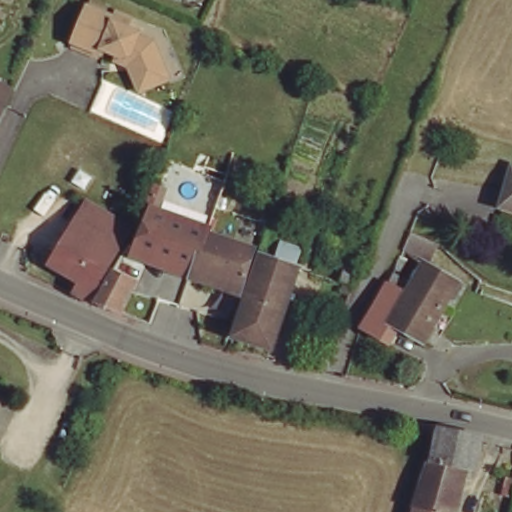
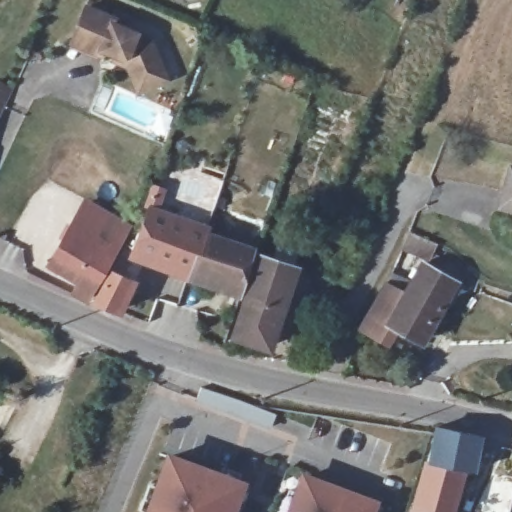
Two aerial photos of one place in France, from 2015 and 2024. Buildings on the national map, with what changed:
unchanged [(99,48),(97,52),(69,42),(82,6),(110,17),(112,12),(126,17),(122,27),(112,53),(99,48)]
unchanged [(136,90),(121,55),(119,56),(112,53),(122,27),(134,32),(133,35),(148,41),(160,67),(165,78),(136,90)]
unchanged [(11,87),(0,116),(0,81),(11,87)]
unchanged [(512,188),(512,214),(505,212),(512,188)]
unchanged [(145,205),(198,226),(198,232),(200,232),(247,251),(232,287),(186,268),(128,245),(145,205)]
unchanged [(75,290),(81,278),(52,265),(74,222),(79,224),(88,207),(128,227),(117,244),(90,297),(75,290)]
unchanged [(226,335),(259,256),(289,268),(258,347),(226,335)]
unchanged [(101,302),(120,265),(140,276),(123,309),(101,302)]
unchanged [(388,312),(408,282),(453,310),(431,343),(405,328),(395,343),(376,332),(377,323),(385,310),(388,312)]
new [(196,401),(202,386),(276,413),(270,428),(196,401)]
unchanged [(430,460),(438,427),(482,438),(476,472),(464,468),(430,460)]
new [(230,512),(149,512),(169,460),(240,486),(230,512)]
unchanged [(413,512),(413,511),(430,460),(464,468),(454,512),(413,512)]
new [(373,506),(370,512),(292,512),(304,480),(373,506)]

